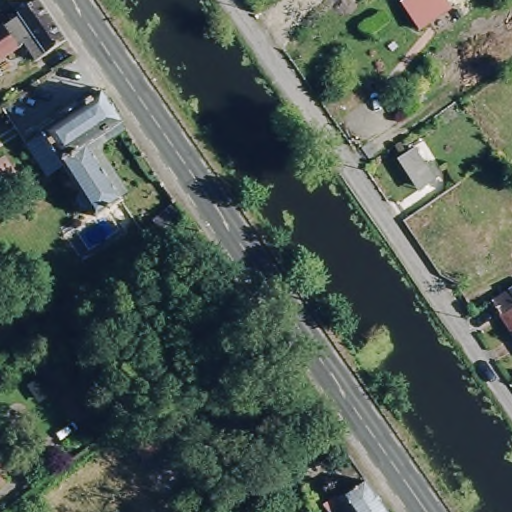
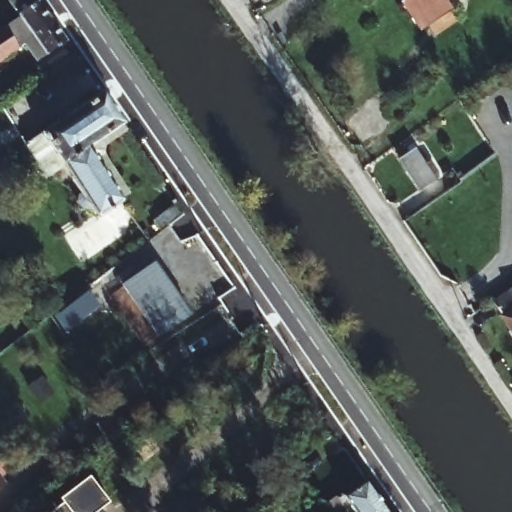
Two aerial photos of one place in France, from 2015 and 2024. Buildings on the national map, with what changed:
unchanged [(17,16),(6,0),(35,0),(64,42),(33,63),(20,45),(0,59),(0,27),(5,24),(17,16)]
new [(277,0),(278,0),(277,1),(277,0)]
unchanged [(417,31),(398,2),(402,0),(443,0),(450,10),(417,31)]
unchanged [(87,210),(81,209),(76,202),(76,201),(77,198),(80,195),(78,192),(63,170),(40,133),(99,93),(120,124),(85,148),(113,191),(90,208),(87,210)]
unchanged [(433,180),(419,190),(398,160),(413,149),(433,180)]
unchanged [(0,193),(2,197),(0,198),(0,193)]
new [(192,315),(158,339),(121,285),(155,262),(192,315)]
unchanged [(512,288),(512,294),(509,290),(512,288)]
unchanged [(490,303),(509,290),(512,294),(512,336),(490,303)]
new [(109,502),(96,512),(48,512),(50,511),(62,502),(58,498),(88,477),(109,502)]
unchanged [(386,512),(353,512),(345,500),(340,503),(335,497),(340,493),(342,495),(364,480),(386,512)]

